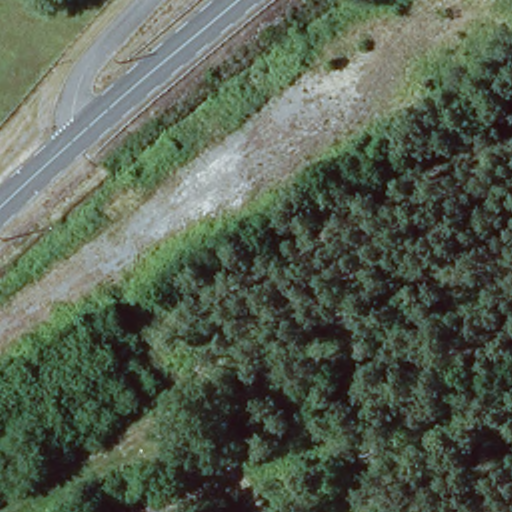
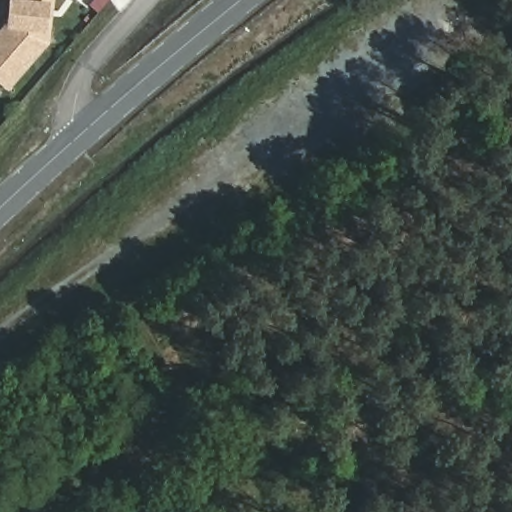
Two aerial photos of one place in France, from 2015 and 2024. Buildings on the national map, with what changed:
new [(4,0),(46,0),(45,6),(40,5),(36,27),(42,28),(40,42),(2,87),(0,85),(0,26),(1,25),(4,0)]

